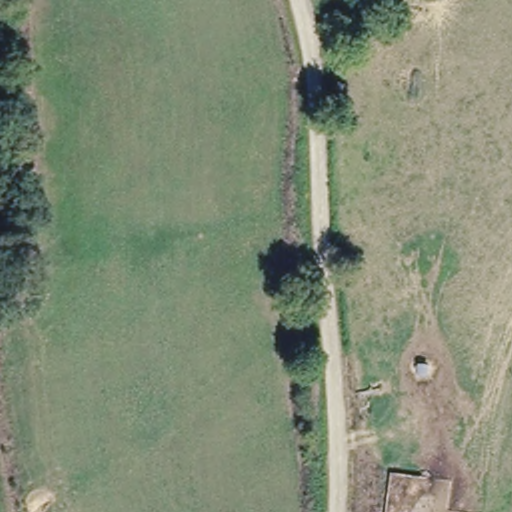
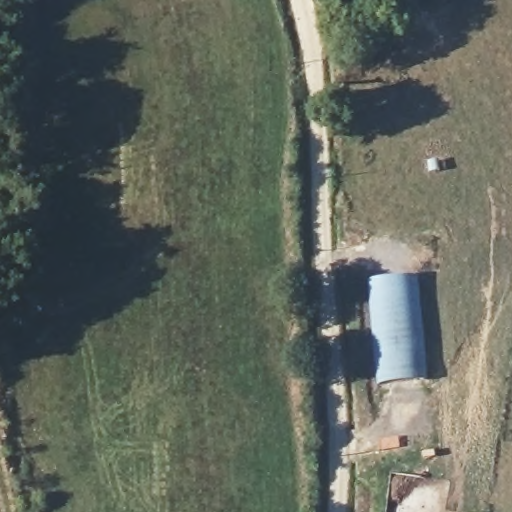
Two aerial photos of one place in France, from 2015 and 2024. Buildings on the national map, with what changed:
new [(370,280),(415,275),(426,380),(379,382),(370,280)]

